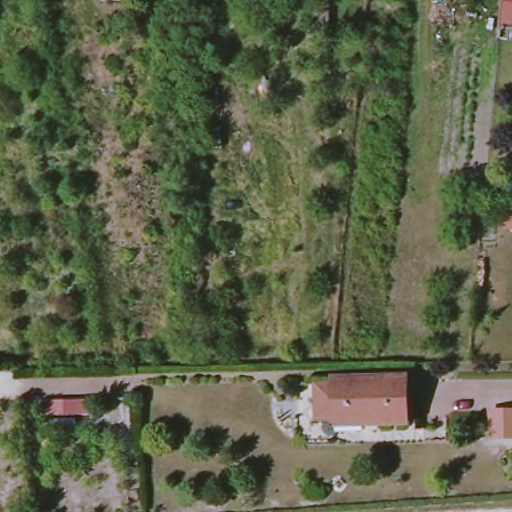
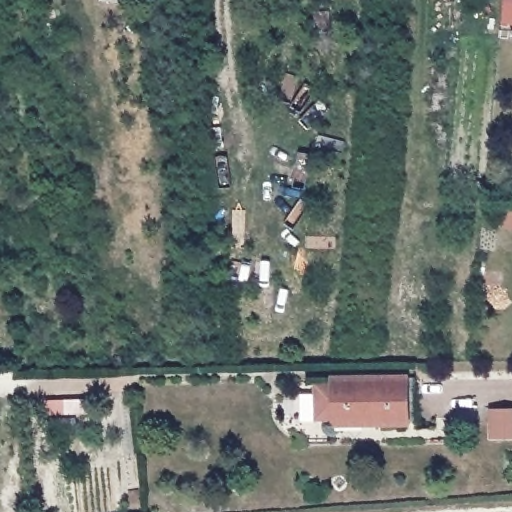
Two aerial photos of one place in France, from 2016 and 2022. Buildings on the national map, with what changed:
unchanged [(512,24),(502,22),(504,0),(512,0),(512,24)]
unchanged [(408,422),(333,422),(312,419),(313,378),(328,378),(328,370),(411,371),(408,422)]

